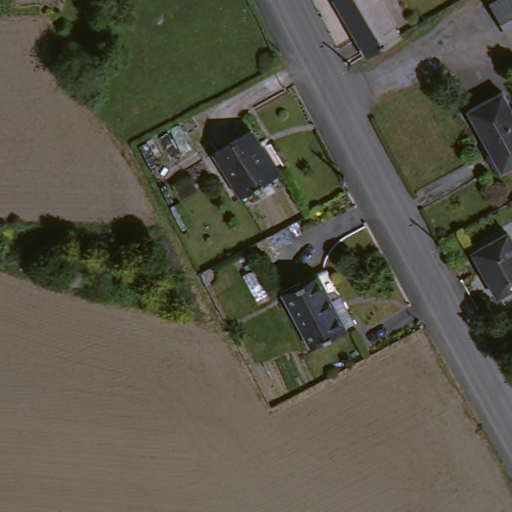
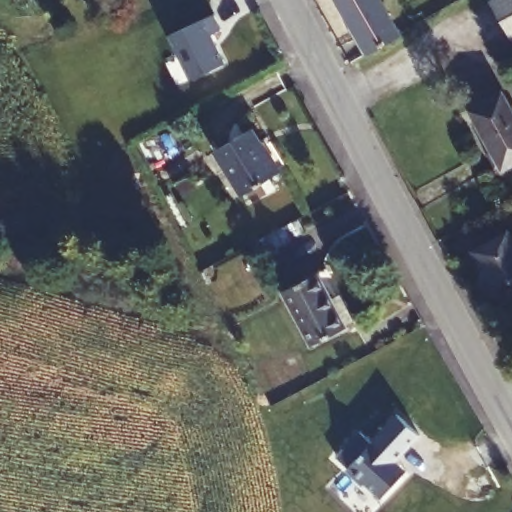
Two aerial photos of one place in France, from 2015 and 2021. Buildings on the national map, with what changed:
unchanged [(371,51),(343,0),(381,0),(401,34),(371,51)]
unchanged [(495,0),(512,0),(512,32),(495,0)]
new [(214,15),(221,30),(211,35),(224,64),(189,79),(169,35),(214,15)]
unchanged [(505,87),(512,101),(512,165),(503,169),(469,106),(505,87)]
unchanged [(256,129),(284,173),(246,195),(221,152),(256,129)]
unchanged [(511,232),(512,234),(512,286),(501,292),(478,249),(511,232)]
unchanged [(361,322),(348,328),(312,346),(286,290),(319,274),(333,299),(346,293),(361,322)]
new [(403,480),(383,503),(365,488),(363,490),(346,475),(348,473),(336,462),(359,435),(372,447),(398,418),(421,438),(396,465),(401,469),(408,475),(403,480)]

